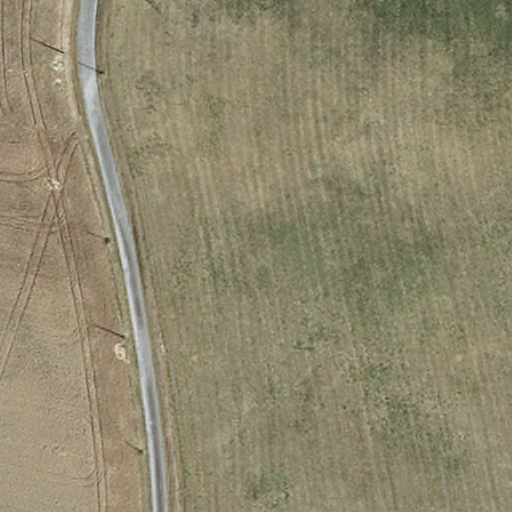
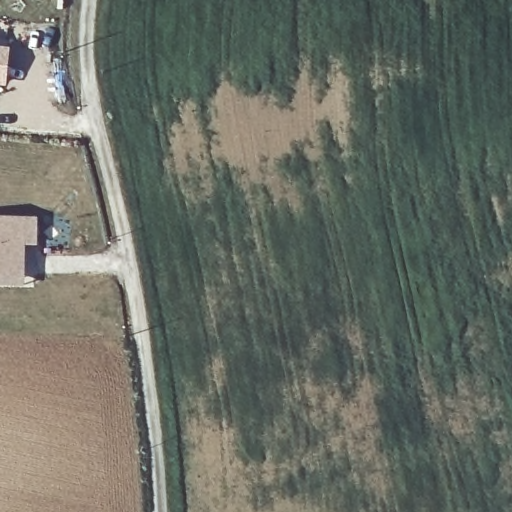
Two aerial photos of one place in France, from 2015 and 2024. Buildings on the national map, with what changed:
new [(9,49),(6,86),(0,85),(0,49),(9,49)]
new [(0,287),(0,217),(37,218),(37,246),(24,246),(24,287),(0,287)]

